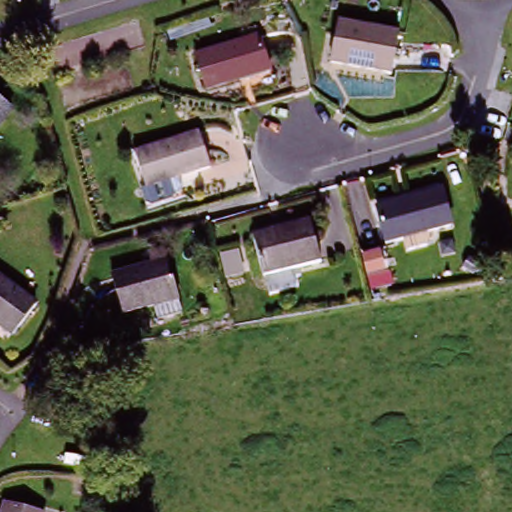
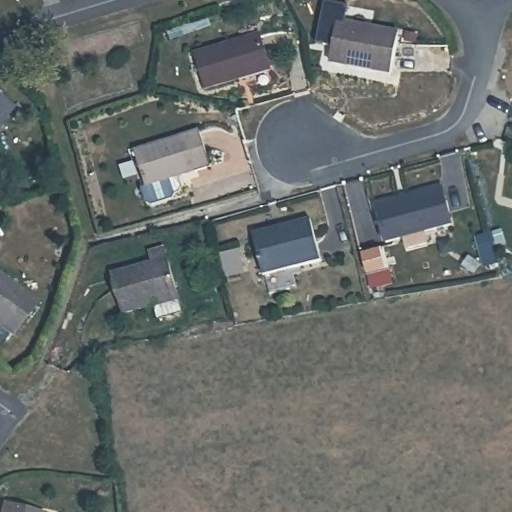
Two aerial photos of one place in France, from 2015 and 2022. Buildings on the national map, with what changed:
unchanged [(325,66),(335,26),(395,39),(387,80),(325,66)]
unchanged [(267,75),(202,94),(192,58),(257,40),(267,75)]
unchanged [(0,128),(0,101),(13,111),(0,128)]
unchanged [(146,196),(131,150),(195,130),(207,165),(175,175),(178,185),(167,189),(146,196)]
unchanged [(417,231),(420,244),(402,249),(399,237),(382,242),(372,206),(437,188),(447,224),(417,231)]
unchanged [(253,239),(312,224),(322,265),(264,280),(253,239)]
unchanged [(184,317),(160,325),(155,307),(124,317),(111,278),(153,265),(150,255),(164,251),(184,317)]
unchanged [(0,322),(0,277),(37,304),(15,333),(0,322)]
unchanged [(22,512),(4,512),(5,507),(22,512)]

